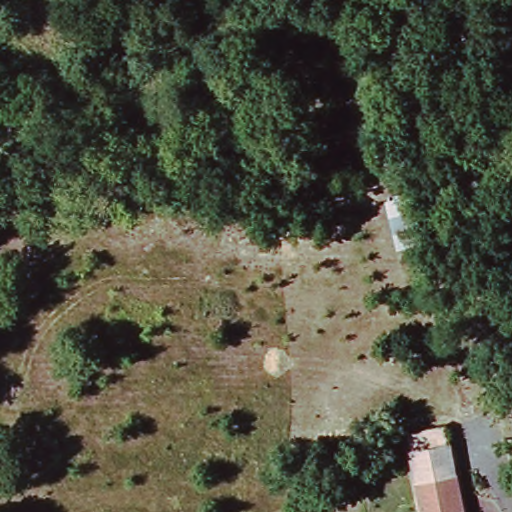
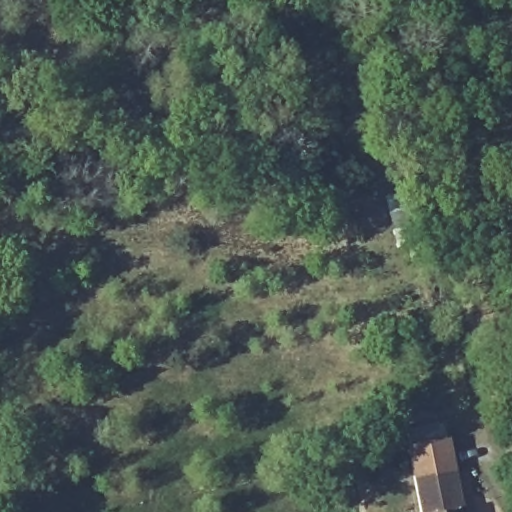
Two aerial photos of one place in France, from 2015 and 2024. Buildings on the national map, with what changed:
unchanged [(410,474),(405,447),(444,437),(449,467),(410,474)]
unchanged [(449,467),(458,512),(418,512),(410,474),(449,467)]

